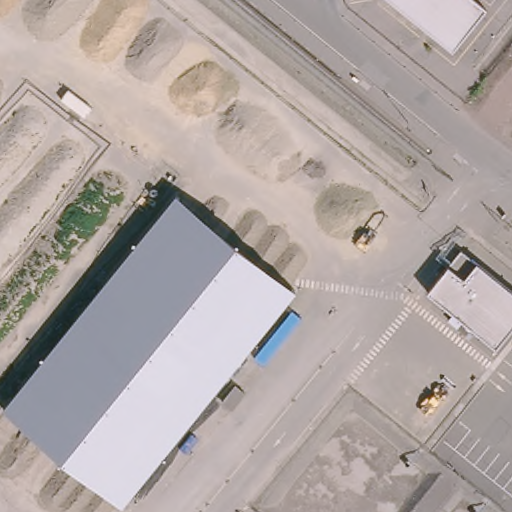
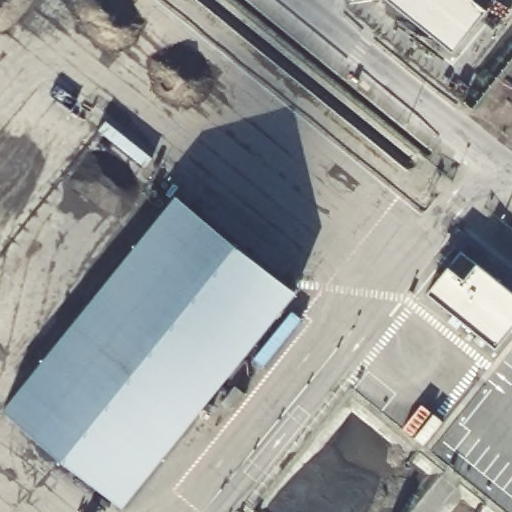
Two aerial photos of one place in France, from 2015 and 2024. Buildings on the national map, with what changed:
unchanged [(487,11),(453,53),(388,0),(473,0),(487,11)]
unchanged [(130,512),(122,512),(8,420),(181,205),(301,302),(130,512)]
unchanged [(512,293),(512,339),(501,353),(432,298),(466,256),(512,293)]
unchanged [(245,394),(232,411),(222,403),(236,386),(245,394)]

